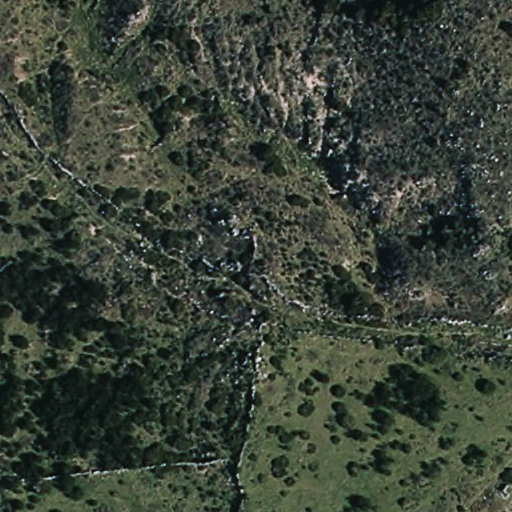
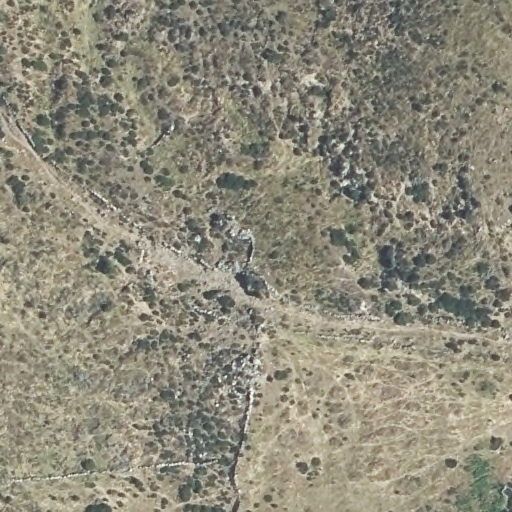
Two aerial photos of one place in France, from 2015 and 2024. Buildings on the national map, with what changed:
[]

